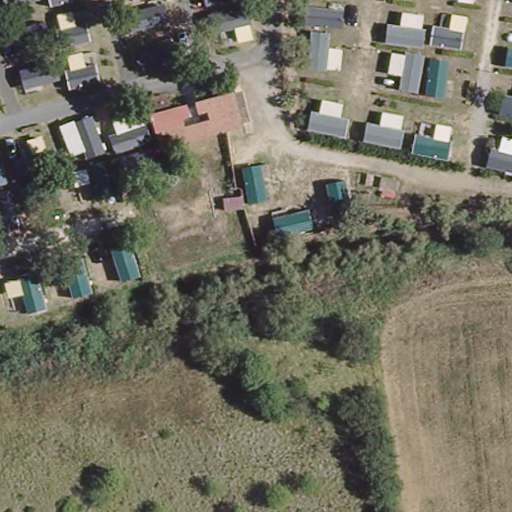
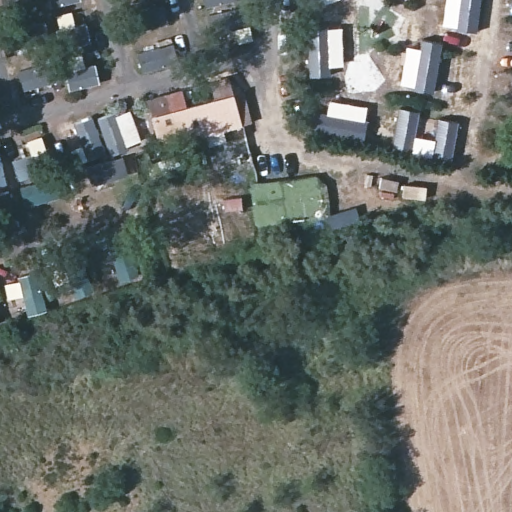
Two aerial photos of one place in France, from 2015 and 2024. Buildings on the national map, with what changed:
unchanged [(146,114),(244,86),(253,117),(155,144),(146,114)]

